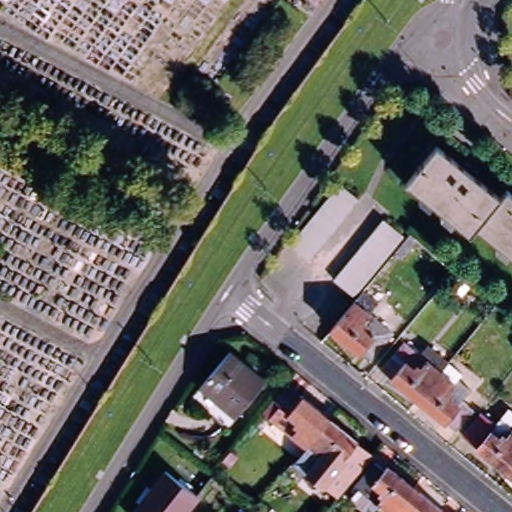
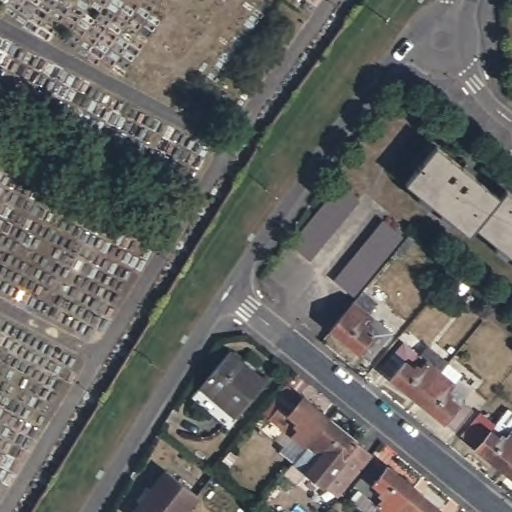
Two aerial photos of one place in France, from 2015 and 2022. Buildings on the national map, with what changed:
unchanged [(463,164),(468,158),(478,167),(474,172),(499,194),(506,186),(512,192),(512,255),(474,223),(467,233),(405,179),(437,141),(463,164)]
unchanged [(336,188),(355,204),(304,265),(286,249),(336,188)]
unchanged [(378,223),(398,240),(348,300),(328,283),(378,223)]
unchanged [(358,293),(373,305),(363,316),(387,336),(363,364),(324,333),(358,293)]
unchanged [(374,373),(398,344),(435,375),(411,403),(374,373)]
unchanged [(231,348),(267,379),(236,414),(201,383),(231,348)]
unchanged [(435,375),(445,363),(459,374),(453,380),(467,392),(457,405),(467,413),(449,434),(411,403),(435,375)]
unchanged [(330,419),(308,447),(264,411),(288,384),(330,419)]
unchanged [(476,415),(489,427),(503,411),(512,419),(512,454),(496,473),(456,439),(476,415)]
unchanged [(308,447),(330,419),(361,444),(374,454),(368,461),(340,494),(297,459),(308,447)]
unchanged [(512,454),(512,486),(496,473),(512,454)]
unchanged [(384,512),(355,489),(376,463),(386,470),(389,466),(416,488),(396,512),(384,512)]
unchanged [(199,496),(187,512),(133,512),(166,470),(199,496)]
unchanged [(445,512),(396,512),(416,488),(445,512)]

